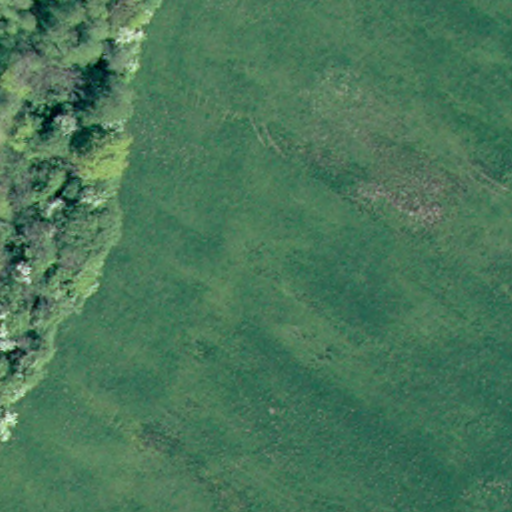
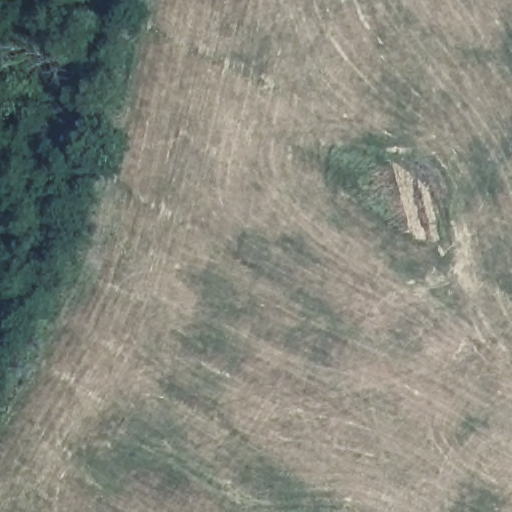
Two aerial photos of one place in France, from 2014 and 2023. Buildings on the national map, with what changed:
[]

